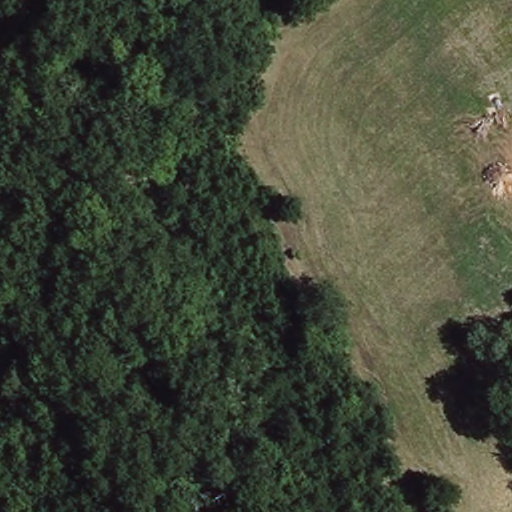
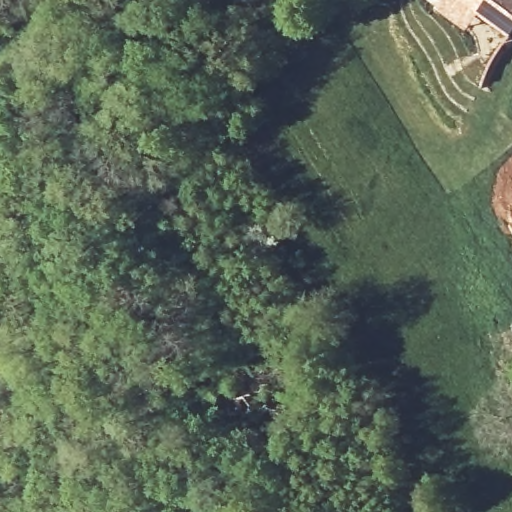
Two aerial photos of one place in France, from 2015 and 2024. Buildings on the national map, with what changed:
new [(511,36),(479,13),(466,31),(433,6),(437,0),(512,0),(512,34),(511,36)]

